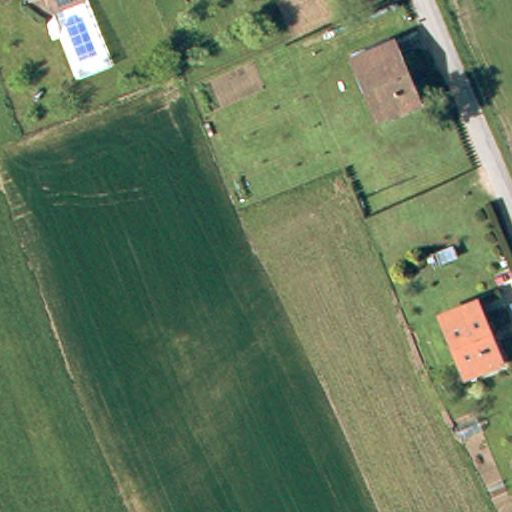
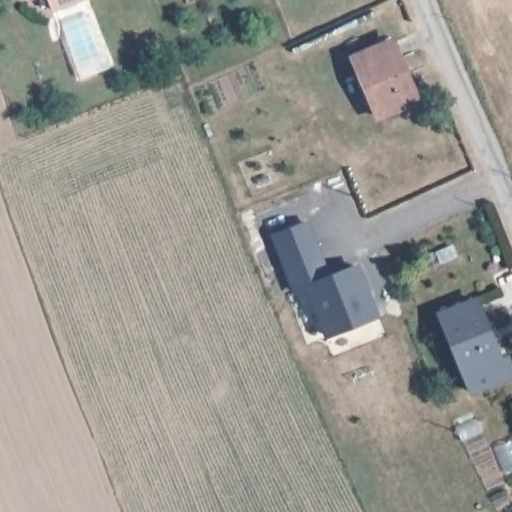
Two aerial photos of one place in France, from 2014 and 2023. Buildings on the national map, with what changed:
unchanged [(55,11),(51,0),(86,0),(55,11)]
unchanged [(406,61),(407,63),(403,65),(411,86),(416,84),(423,104),(381,121),(356,61),(399,44),(401,50),(406,61)]
new [(376,316),(328,335),(309,284),(296,290),(274,236),(308,221),(329,276),(356,266),(376,316)]
unchanged [(481,303),(489,325),(486,326),(494,346),(499,344),(507,364),(470,379),(444,317),(481,303)]

